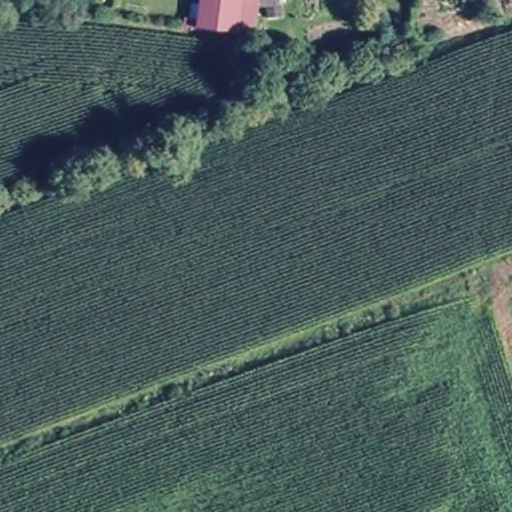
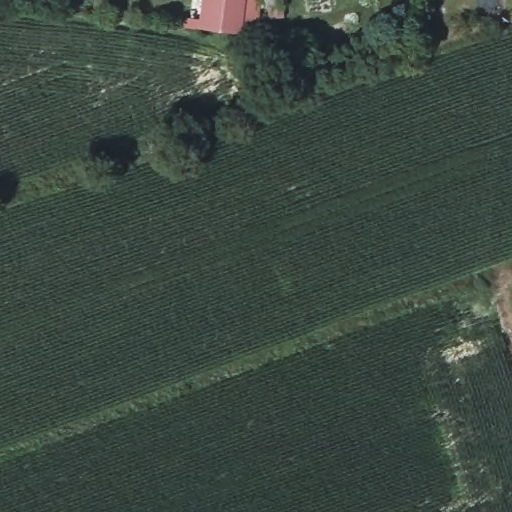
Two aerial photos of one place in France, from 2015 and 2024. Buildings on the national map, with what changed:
unchanged [(203,0),(244,0),(241,29),(200,23),(203,0)]

